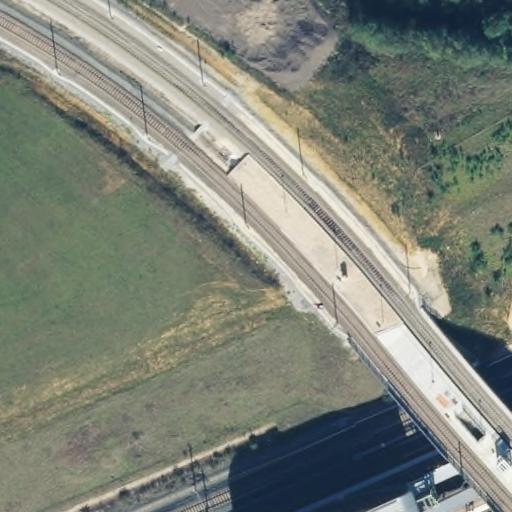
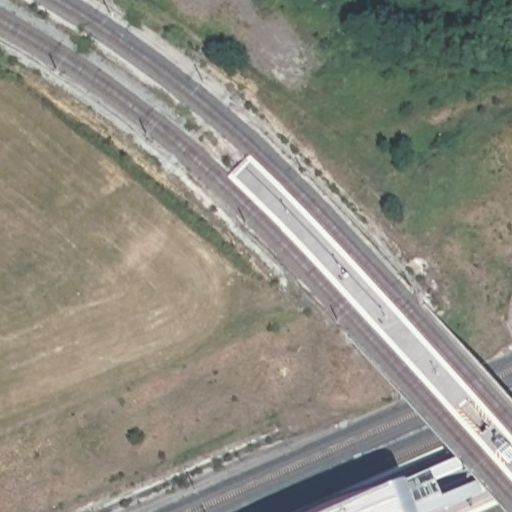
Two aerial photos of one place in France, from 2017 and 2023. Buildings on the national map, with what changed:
unchanged [(404,479),(409,491),(432,480),(444,506),(433,512),(332,512),(404,479)]

